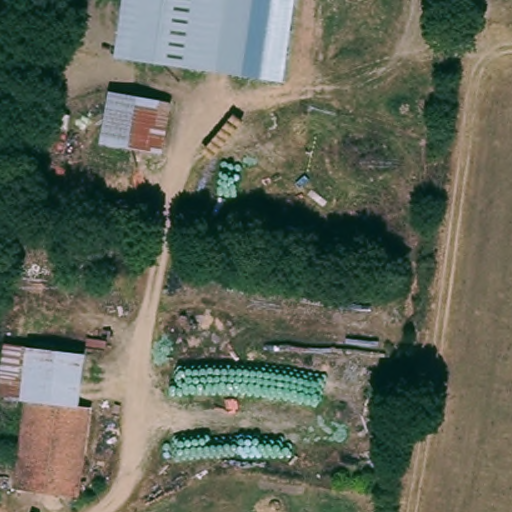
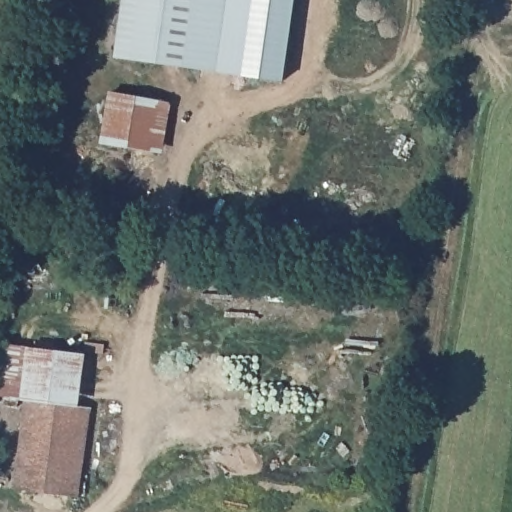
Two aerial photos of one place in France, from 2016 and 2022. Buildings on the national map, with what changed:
unchanged [(243,77),(116,57),(125,0),(254,0),(243,77)]
unchanged [(254,0),(296,0),(284,81),(243,77),(254,0)]
unchanged [(169,105),(161,156),(106,147),(115,96),(169,105)]
unchanged [(83,405),(94,406),(83,495),(18,488),(28,397),(3,395),(8,343),(33,345),(89,355),(83,405)]

